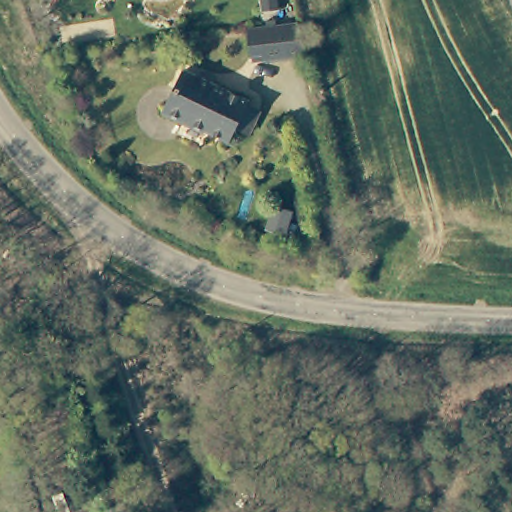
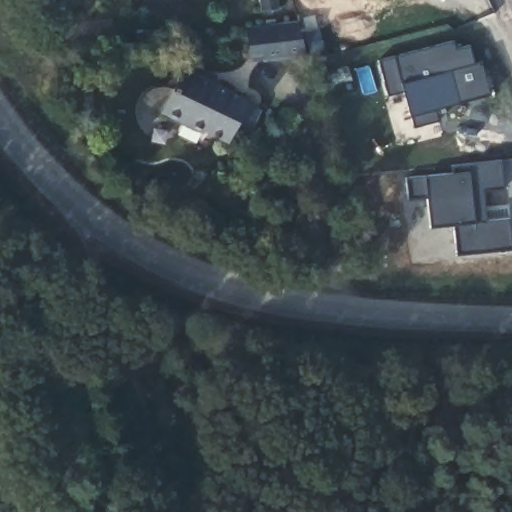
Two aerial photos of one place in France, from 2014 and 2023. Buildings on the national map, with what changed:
unchanged [(272,5),(256,7),(255,0),(272,0),(272,5)]
unchanged [(306,54),(249,62),(243,25),(296,18),(306,54)]
new [(380,61),(453,42),(456,50),(470,47),(474,64),(482,62),(490,94),(436,109),(440,121),(415,127),(412,116),(405,92),(388,96),(380,61)]
unchanged [(244,133),(232,127),(225,140),(185,117),(183,120),(164,110),(184,67),(246,99),(244,104),(257,111),(244,133)]
new [(483,190),(487,221),(510,218),(512,237),(512,249),(457,256),(456,225),(431,227),(427,198),(410,200),(407,178),(426,176),(454,172),(453,166),(468,164),(501,161),(504,187),(483,190)]
unchanged [(125,512),(127,511),(127,512),(125,512)]

